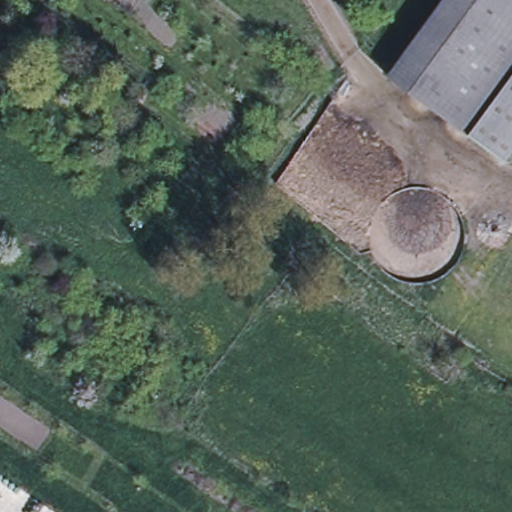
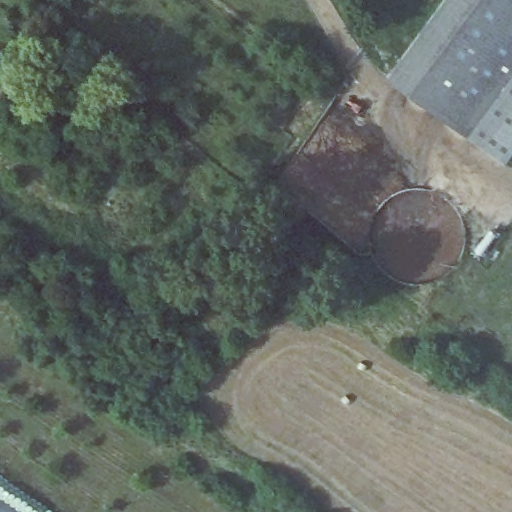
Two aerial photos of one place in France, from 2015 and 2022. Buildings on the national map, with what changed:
unchanged [(442,0),(496,0),(512,12),(512,80),(470,137),(386,76),(442,0)]
unchanged [(512,0),(512,12),(496,0),(512,0)]
unchanged [(470,137),(512,80),(512,151),(504,162),(470,137)]

